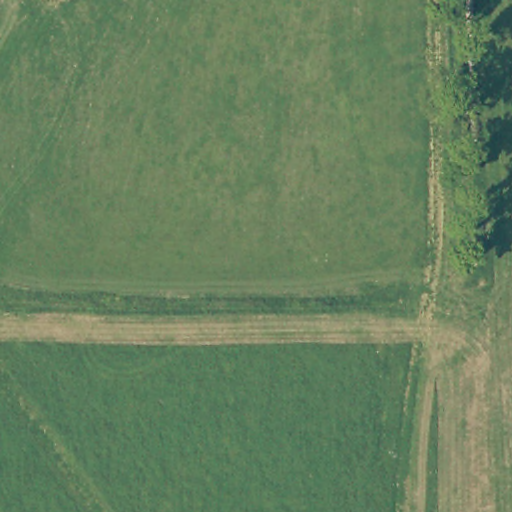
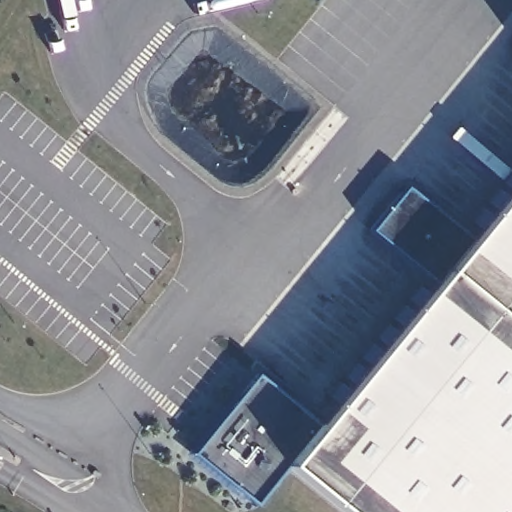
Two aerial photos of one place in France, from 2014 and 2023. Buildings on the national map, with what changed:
new [(512,186),(512,512),(342,512),(286,467),(256,504),(193,454),(256,374),(318,426),(436,283),(372,230),(406,187),(469,239),(512,186)]

